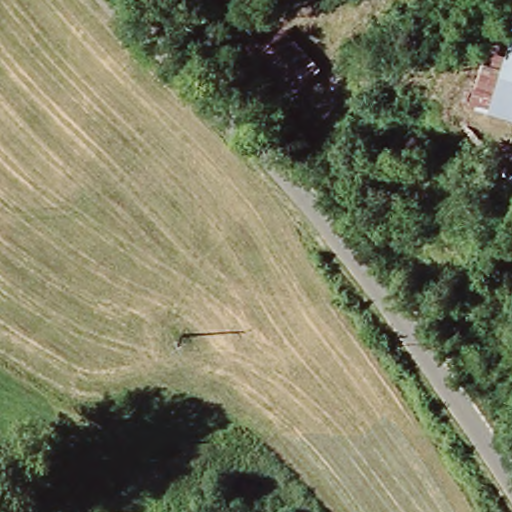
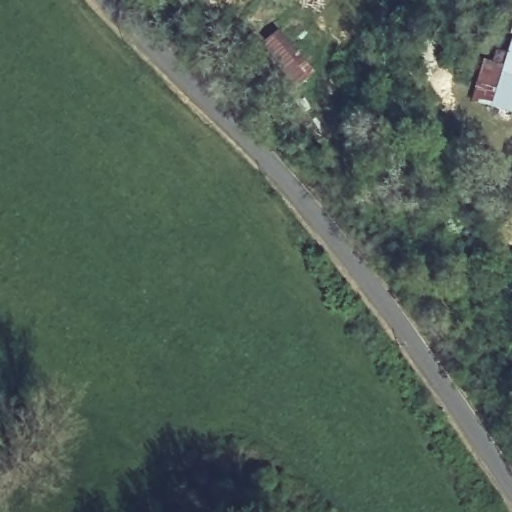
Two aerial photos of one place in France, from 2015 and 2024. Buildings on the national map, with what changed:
unchanged [(243,47),(252,35),(259,42),(280,29),(318,70),(290,97),(243,47)]
unchanged [(481,64),(492,66),(498,55),(504,57),(512,31),(512,117),(469,107),(481,64)]

